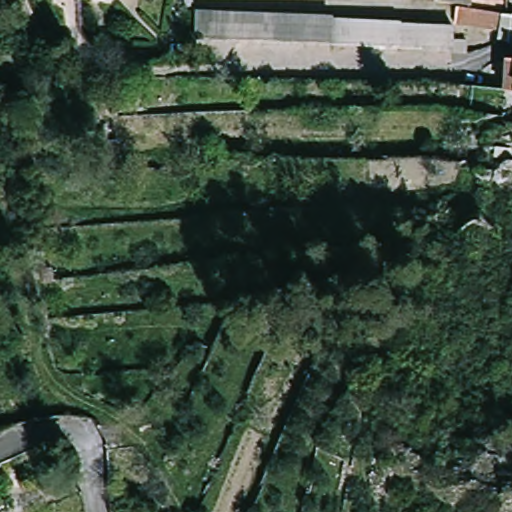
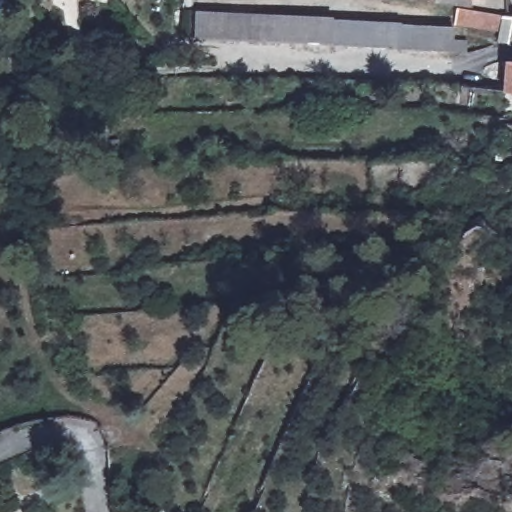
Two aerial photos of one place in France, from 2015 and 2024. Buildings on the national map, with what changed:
unchanged [(469,13),(456,11),(447,8),(415,4),(415,0),(512,0),(512,20),(469,13)]
unchanged [(510,48),(511,38),(468,30),(469,13),(512,20),(512,48),(510,48)]
unchanged [(479,61),(465,60),(465,57),(451,57),(206,45),(208,18),(346,24),(346,27),(454,33),(467,34),(466,47),(481,48),(479,61)]
unchanged [(105,62),(105,54),(144,53),(144,61),(105,62)]
unchanged [(510,89),(511,58),(512,57),(512,89),(510,89)]

